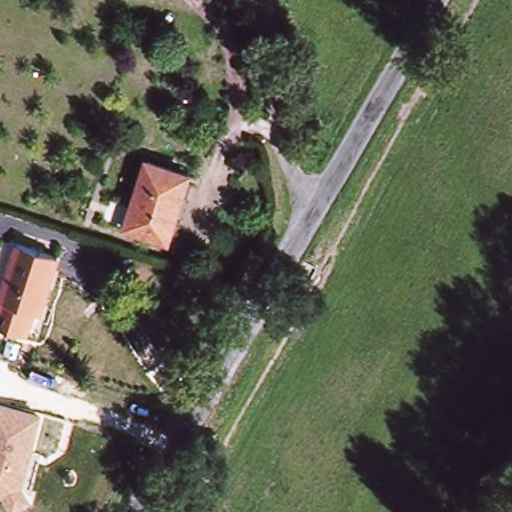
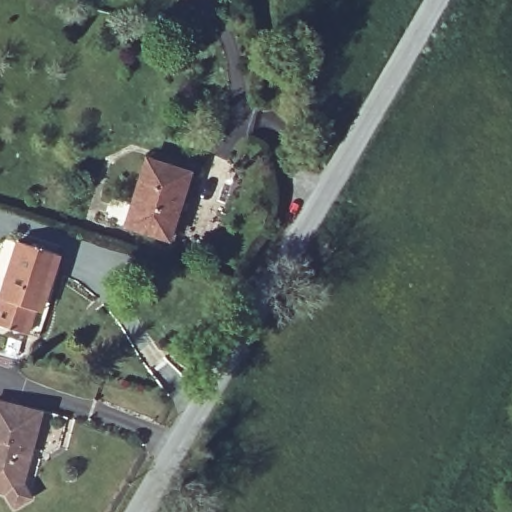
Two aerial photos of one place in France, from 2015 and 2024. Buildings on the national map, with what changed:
unchanged [(170,240),(127,226),(147,161),(190,175),(170,240)]
unchanged [(41,316),(33,313),(24,341),(0,332),(0,301),(17,248),(60,261),(41,316)]
unchanged [(43,411),(26,481),(36,499),(15,510),(6,493),(0,491),(0,400),(43,411)]

